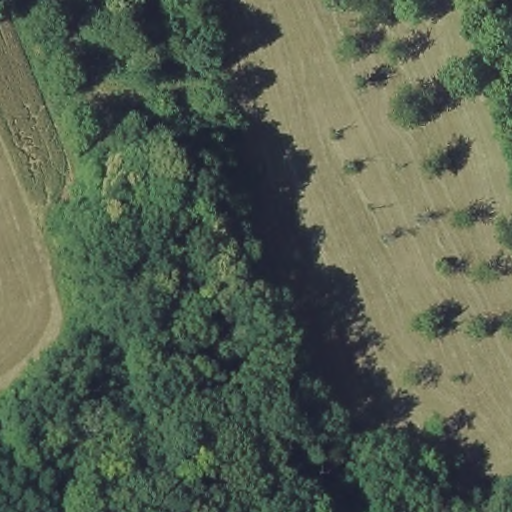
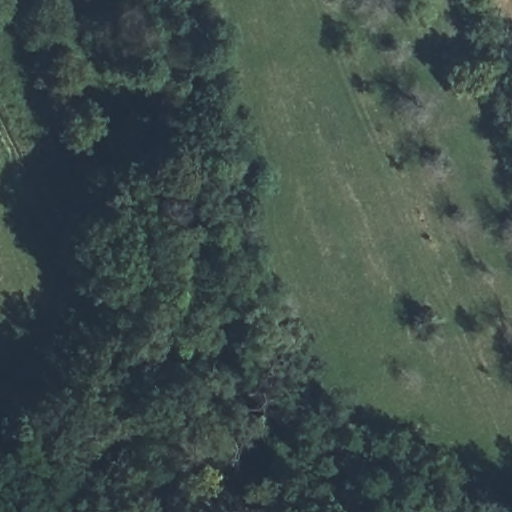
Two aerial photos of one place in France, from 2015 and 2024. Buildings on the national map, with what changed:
unchanged [(154,0),(167,42),(149,47),(132,2),(138,0),(154,0)]

